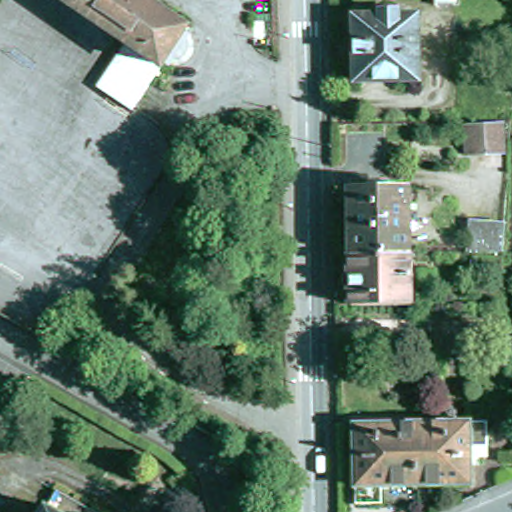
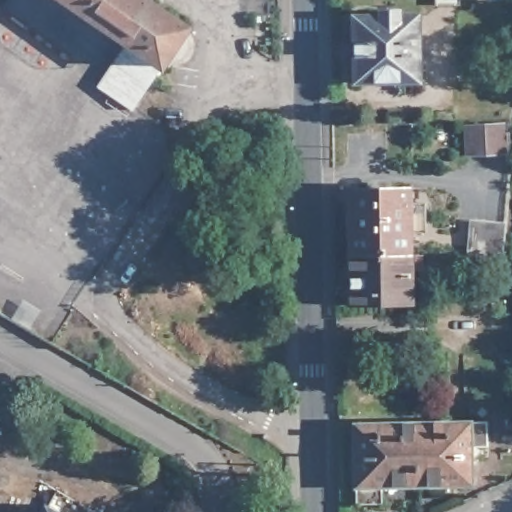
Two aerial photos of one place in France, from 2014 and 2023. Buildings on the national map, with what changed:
unchanged [(193,25),(191,29),(195,32),(194,35),(191,34),(189,35),(184,40),(179,46),(177,50),(174,60),(176,62),(174,63),(170,60),(136,108),(105,86),(134,43),(71,0),(157,0),(193,25)]
unchanged [(468,8),(442,9),(442,0),(468,0),(468,8)]
unchanged [(424,79),(359,82),(358,16),(422,14),(424,79)]
unchanged [(506,153),(470,156),(467,126),(503,123),(506,153)]
unchanged [(355,189),(416,187),(417,252),(355,254),(355,189)]
unchanged [(476,248),(475,218),(510,219),(509,250),(476,248)]
unchanged [(356,308),(355,254),(417,252),(419,306),(356,308)]
unchanged [(489,444),(474,444),(475,483),(384,486),(385,503),(359,504),(356,420),(487,419),(489,444)]
unchanged [(47,510),(56,495),(87,512),(44,512),(45,511),(47,510)]

